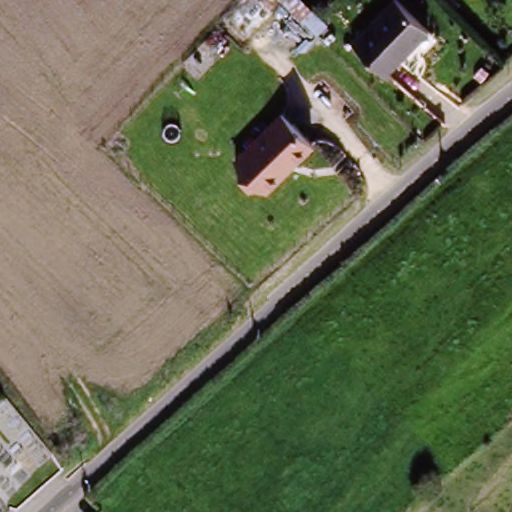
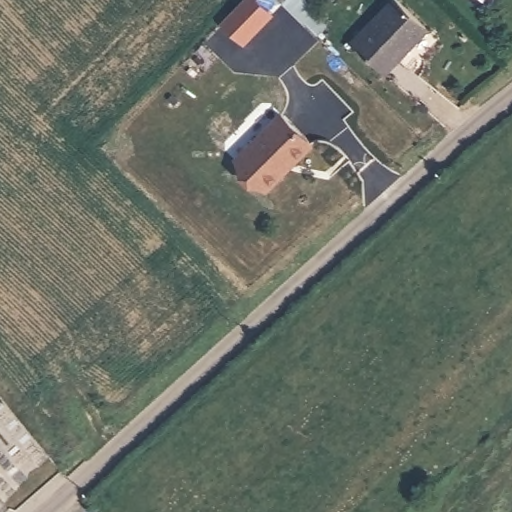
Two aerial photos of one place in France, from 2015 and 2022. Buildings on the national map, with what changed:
new [(247,40),(225,20),(244,0),(262,0),(275,12),(247,40)]
unchanged [(364,51),(355,43),(399,0),(400,0),(431,31),(386,75),(364,51)]
unchanged [(287,175),(270,192),(240,161),(287,115),(317,147),(297,166),(295,164),(287,174),(287,175)]

